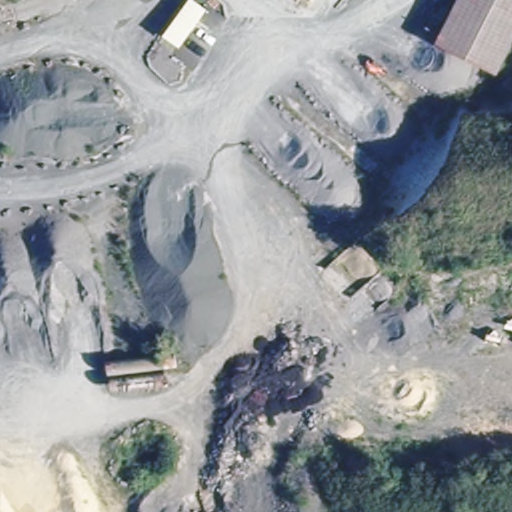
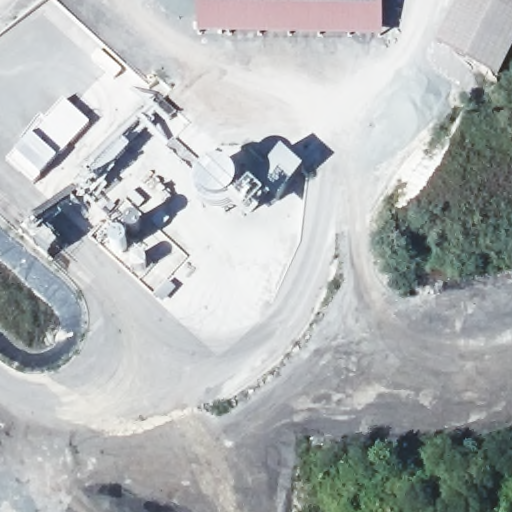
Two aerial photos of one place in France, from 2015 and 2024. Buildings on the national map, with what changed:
new [(198,0),(383,0),(383,34),(314,35),(197,34),(198,0)]
unchanged [(512,33),(488,74),(432,40),(455,0),(512,0),(512,33)]
new [(8,161),(64,101),(89,124),(33,185),(8,161)]

